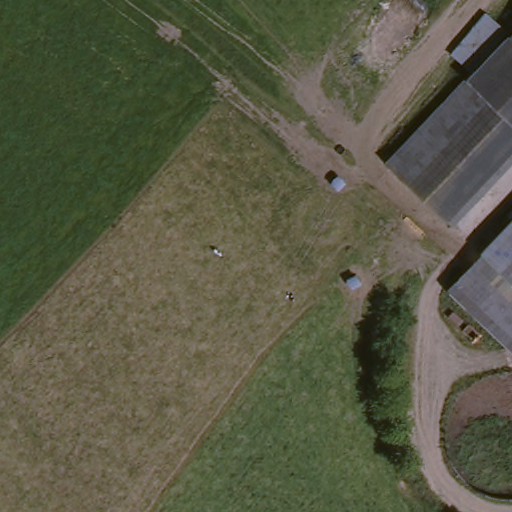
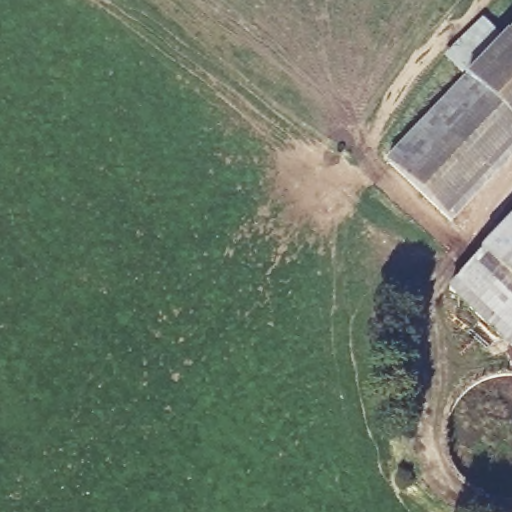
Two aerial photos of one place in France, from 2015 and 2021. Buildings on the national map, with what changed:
unchanged [(512,155),(456,216),(390,157),(508,32),(512,36),(512,155)]
unchanged [(512,213),(512,277),(478,246),(512,213)]
unchanged [(512,356),(447,288),(478,246),(512,277),(512,356)]

